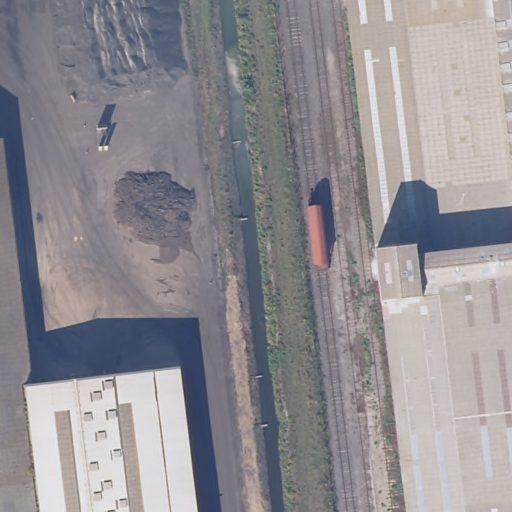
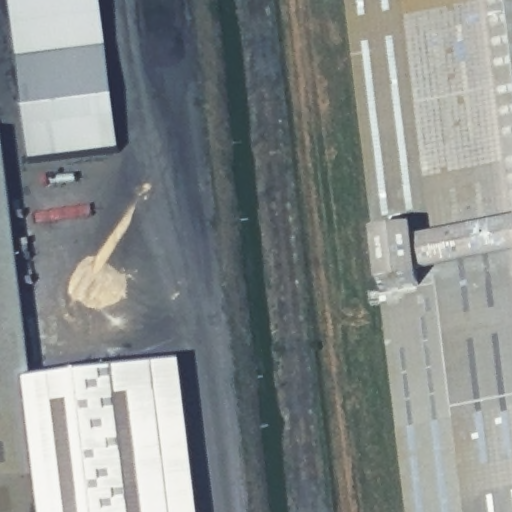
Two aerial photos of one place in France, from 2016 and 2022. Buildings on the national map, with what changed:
new [(101,0),(120,152),(29,163),(9,0),(101,0)]
unchanged [(348,0),(512,0),(512,512),(408,512),(348,0)]
unchanged [(31,384),(47,512),(0,512),(0,135),(2,134),(31,384)]
unchanged [(198,512),(47,512),(31,384),(181,367),(198,512)]

